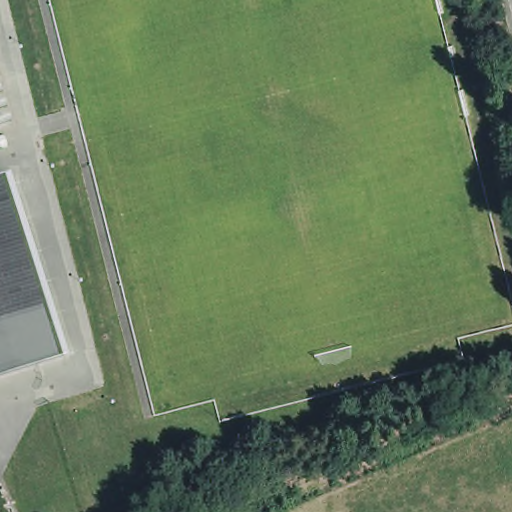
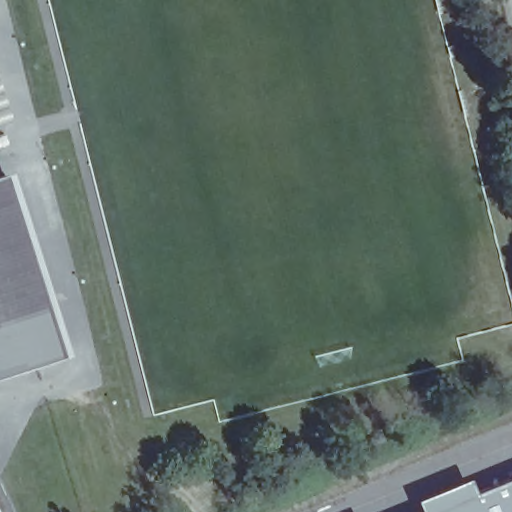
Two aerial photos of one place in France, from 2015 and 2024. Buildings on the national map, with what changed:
unchanged [(73,350),(0,375),(0,176),(11,172),(73,350)]
new [(415,502),(468,480),(474,495),(512,479),(512,512),(419,512),(415,502)]

